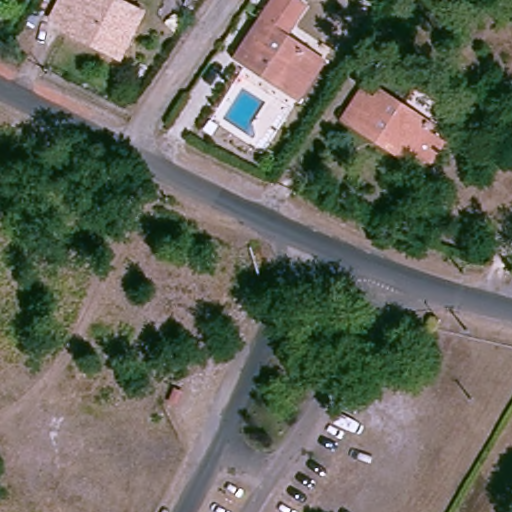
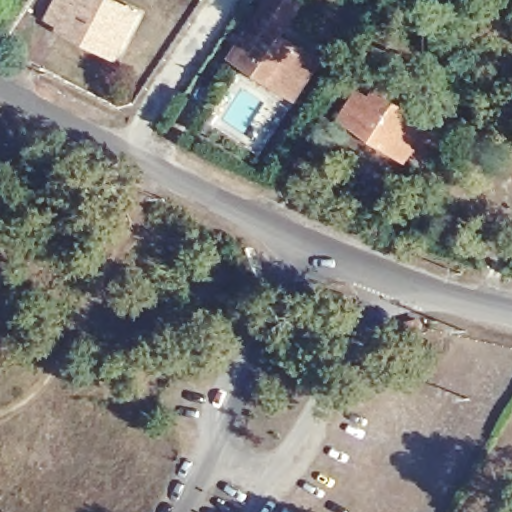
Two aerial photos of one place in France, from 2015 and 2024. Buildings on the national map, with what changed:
unchanged [(128,42),(110,33),(104,44),(69,26),(71,22),(57,14),(64,0),(124,0),(145,11),(128,42)]
unchanged [(287,0),(291,2),(270,33),(296,50),(272,85),(226,53),(249,19),(261,0),(287,0)]
unchanged [(353,89),(368,99),(374,90),(433,129),(436,131),(419,156),(417,154),(395,140),(392,144),(355,119),(352,123),(337,114),(353,89)]

